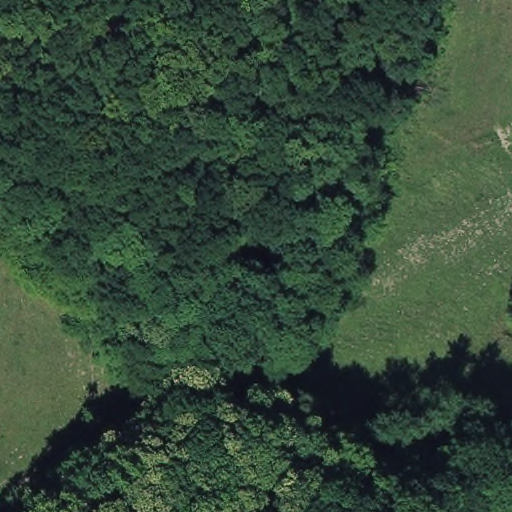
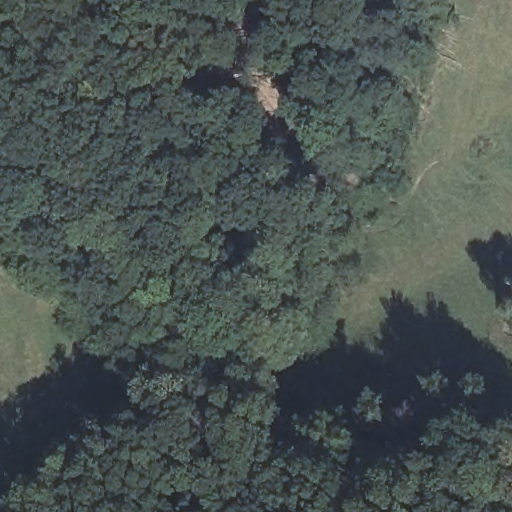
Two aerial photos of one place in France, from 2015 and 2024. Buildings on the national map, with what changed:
[]

